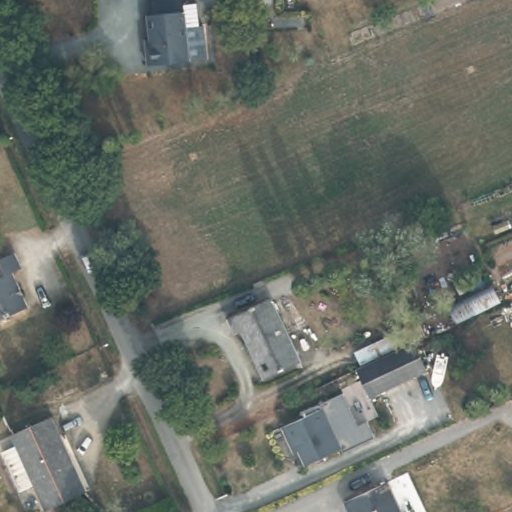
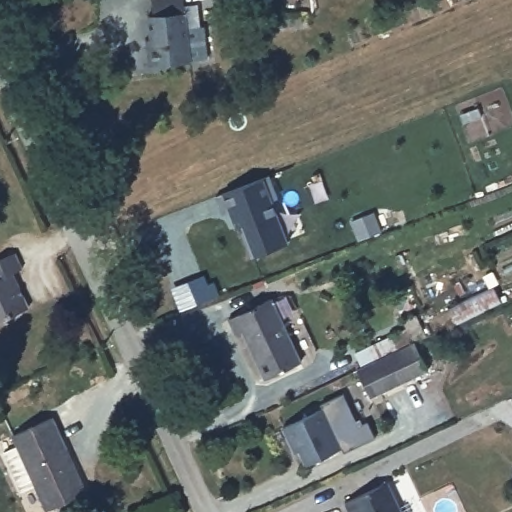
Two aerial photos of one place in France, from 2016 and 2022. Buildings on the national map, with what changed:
unchanged [(179,0),(187,64),(145,71),(142,51),(147,50),(143,19),(148,18),(146,0),(149,0),(179,0)]
new [(237,227),(230,210),(222,212),(216,194),(224,191),(264,176),(268,174),(277,198),(273,200),(290,240),(254,254),(242,225),(237,227)]
unchanged [(21,266),(11,271),(24,303),(0,313),(0,254),(13,249),(21,266)]
unchanged [(270,299),(300,363),(265,380),(242,332),(237,335),(230,319),(270,299)]
unchanged [(418,343),(431,371),(373,398),(360,369),(418,343)]
unchanged [(320,404),(338,446),(303,462),(293,439),(286,442),(277,422),(320,404)]
unchanged [(0,417),(0,415),(1,417),(0,417)]
unchanged [(56,419),(88,494),(51,512),(41,491),(24,498),(7,455),(21,449),(16,437),(56,419)]
unchanged [(344,496),(385,477),(401,512),(351,512),(344,496)]

